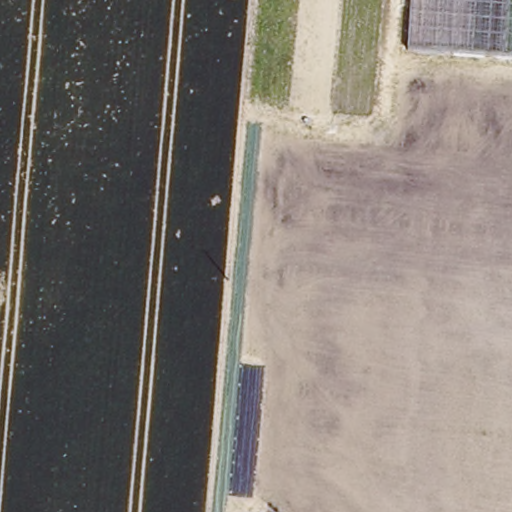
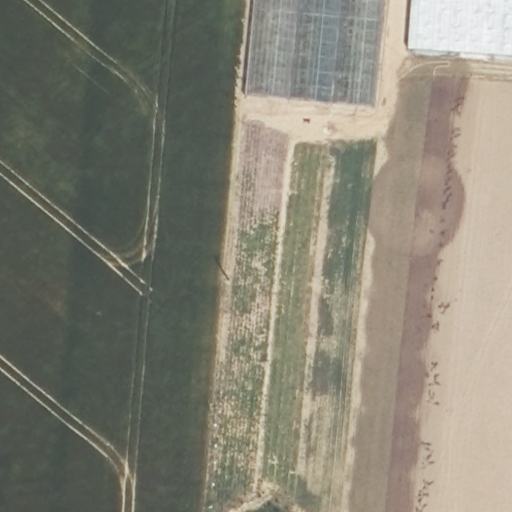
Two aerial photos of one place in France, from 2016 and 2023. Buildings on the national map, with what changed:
demolished [(376,77),(250,63),(255,0),(383,0),(376,77)]
unchanged [(405,44),(409,0),(512,0),(512,53),(405,44)]

